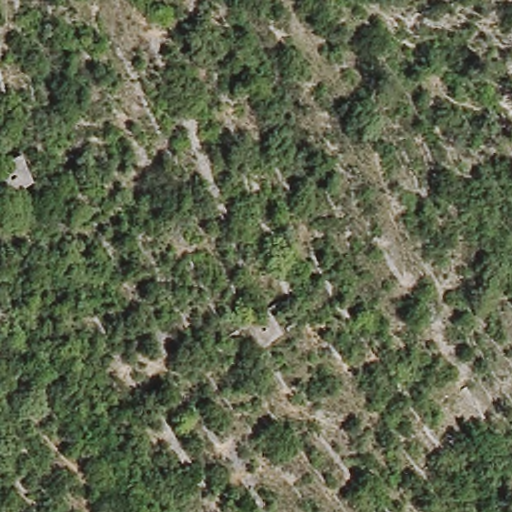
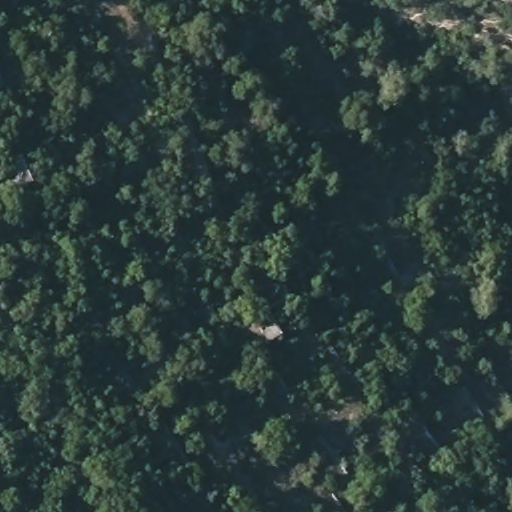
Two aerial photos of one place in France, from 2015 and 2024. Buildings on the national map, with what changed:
unchanged [(9,190),(0,177),(0,158),(21,151),(32,179),(9,190)]
unchanged [(283,335),(259,348),(245,320),(267,306),(283,335)]

